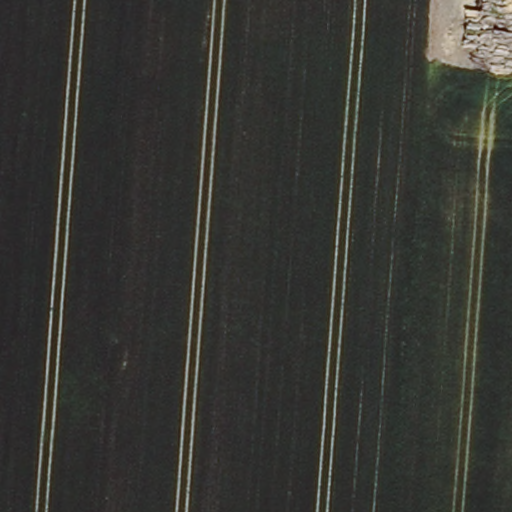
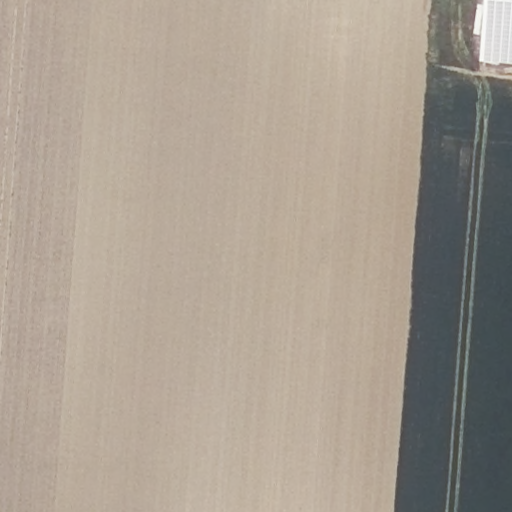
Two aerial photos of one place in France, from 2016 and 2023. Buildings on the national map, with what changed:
new [(486,0),(512,0),(512,58),(482,56),(486,0)]

